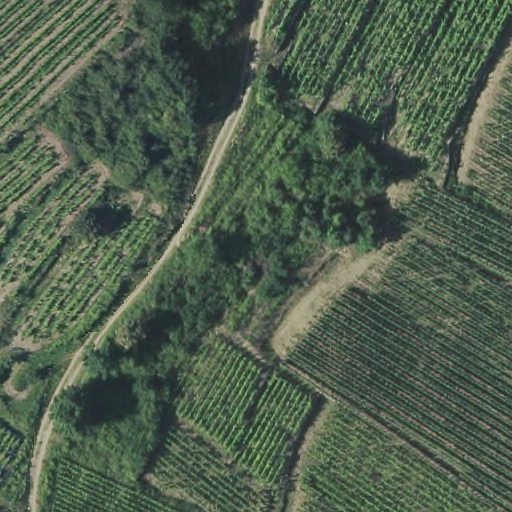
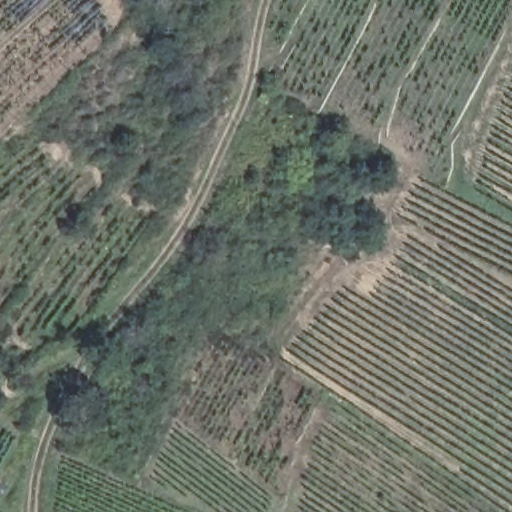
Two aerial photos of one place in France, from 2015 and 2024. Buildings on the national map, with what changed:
[]

